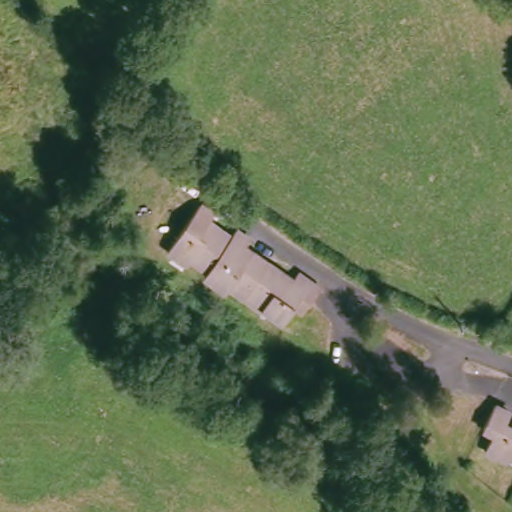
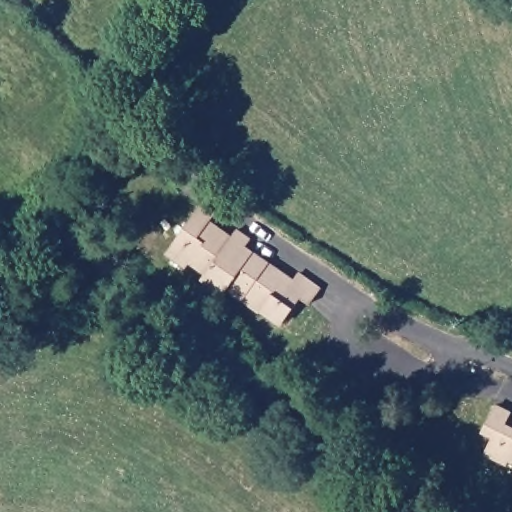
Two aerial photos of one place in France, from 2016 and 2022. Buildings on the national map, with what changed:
unchanged [(299,302),(288,319),(265,303),(264,305),(232,282),(227,287),(207,273),(210,267),(193,255),(190,260),(169,247),(202,200),(215,209),(205,223),(211,227),(215,222),(233,234),(240,226),(255,236),(244,251),(250,255),(255,249),(297,279),(303,270),(324,286),(309,309),(299,302)]
unchanged [(493,342),(491,346),(482,342),(472,339),(475,333),(487,338),(493,342)]
unchanged [(512,418),(510,425),(512,426),(512,463),(490,452),(498,436),(487,430),(498,406),(512,412),(512,418)]

